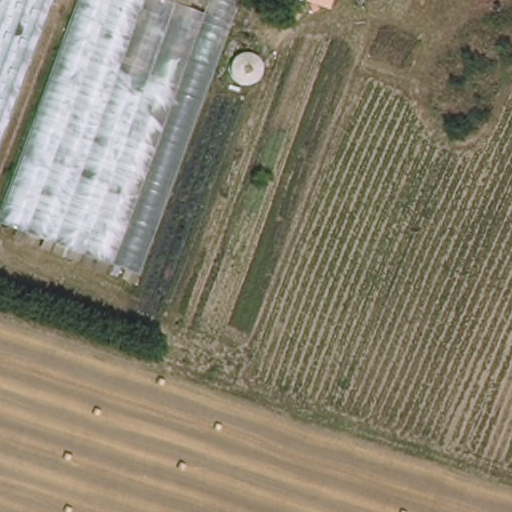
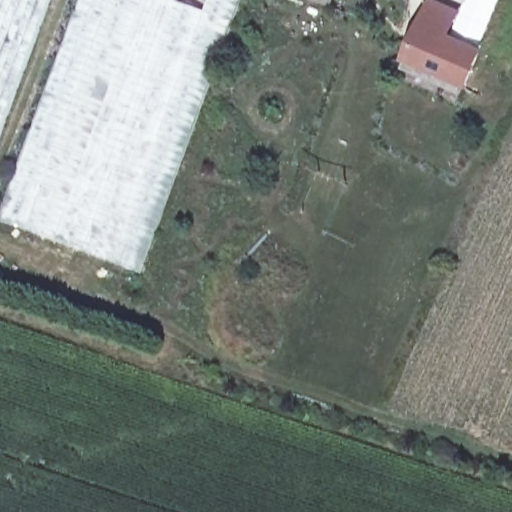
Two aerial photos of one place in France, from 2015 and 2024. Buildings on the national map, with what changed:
unchanged [(48,0),(0,127),(0,0),(48,0)]
unchanged [(83,0),(171,0),(241,26),(146,279),(0,223),(0,220),(83,0)]
new [(307,0),(334,0),(331,8),(307,0)]
new [(467,92),(400,64),(429,0),(430,0),(461,12),(451,37),(483,51),(467,92)]

